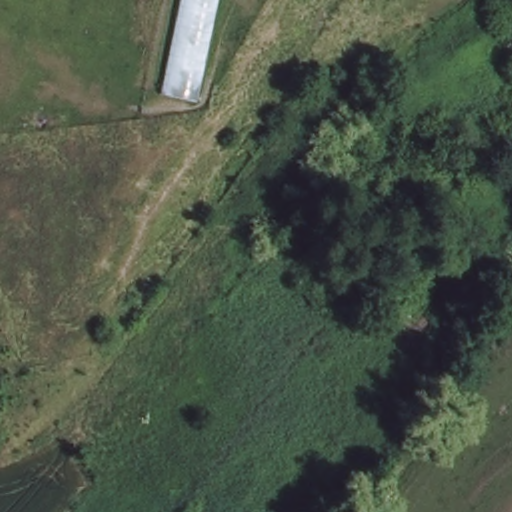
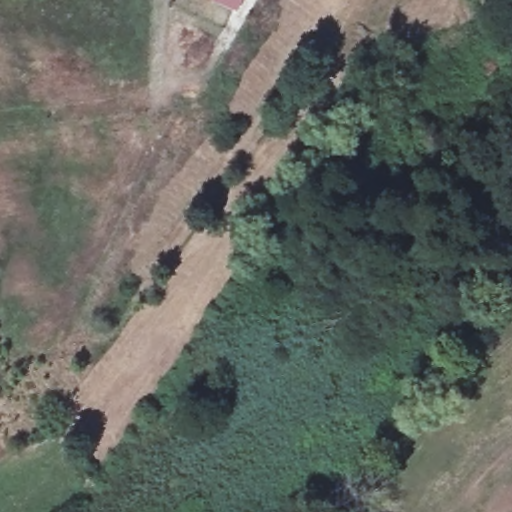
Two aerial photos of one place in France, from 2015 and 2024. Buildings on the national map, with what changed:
demolished [(156,85),(174,0),(211,0),(192,93),(156,85)]
new [(211,7),(214,0),(239,0),(232,15),(211,7)]

